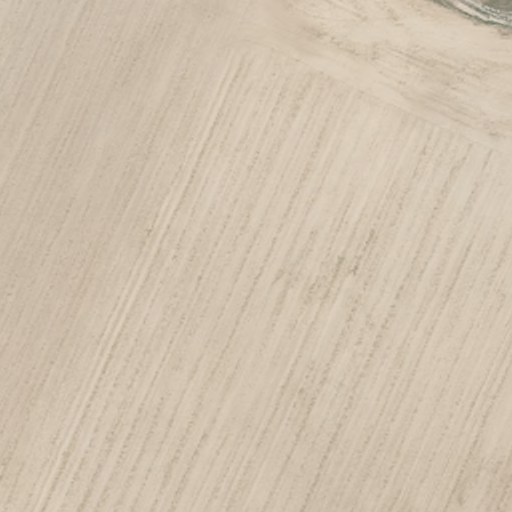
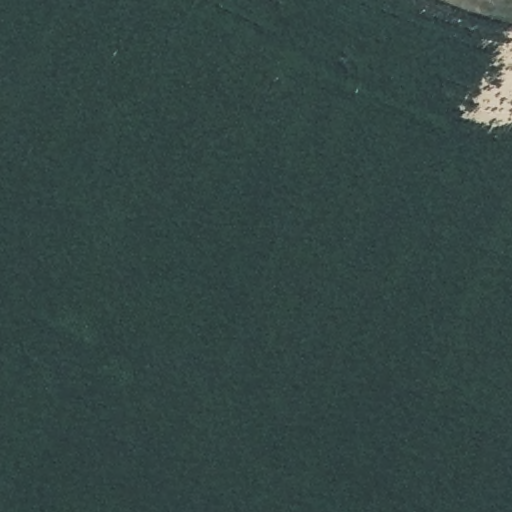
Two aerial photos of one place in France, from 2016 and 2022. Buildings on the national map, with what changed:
[]

